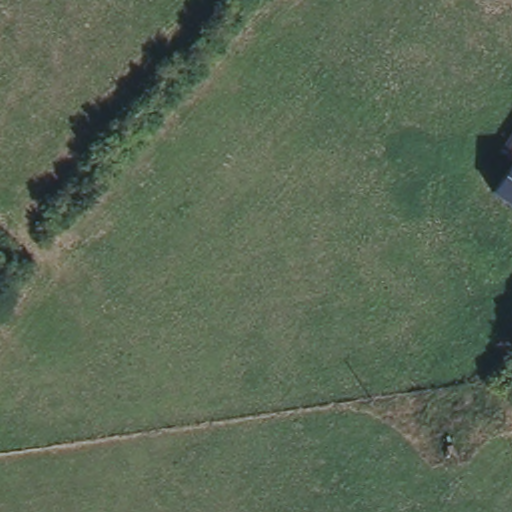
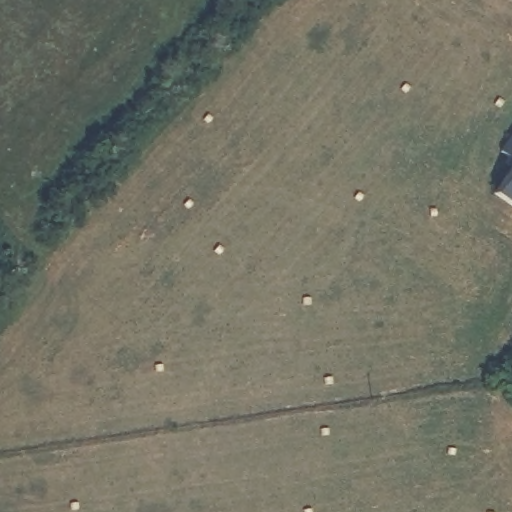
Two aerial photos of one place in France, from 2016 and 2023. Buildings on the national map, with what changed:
unchanged [(485,187),(507,156),(487,141),(512,108),(512,205),(485,187)]

